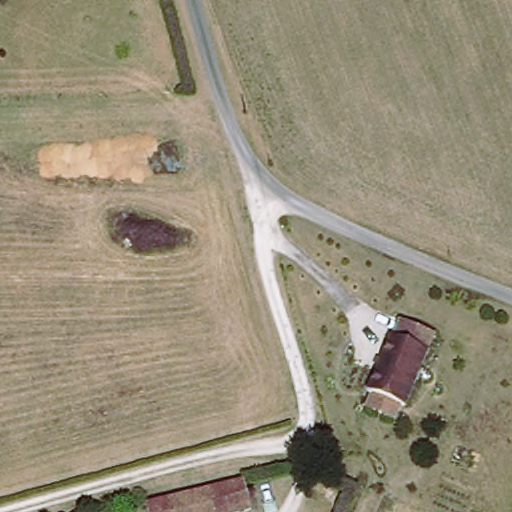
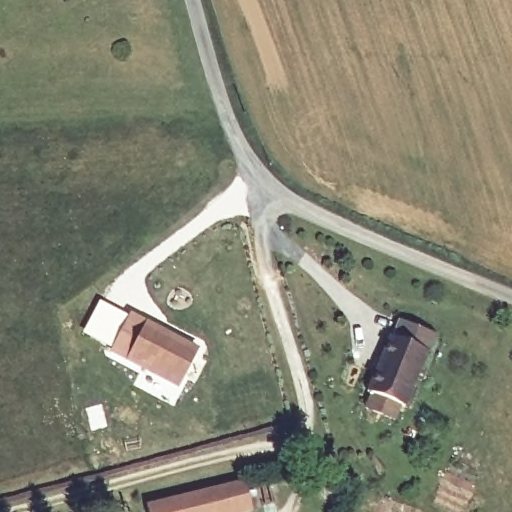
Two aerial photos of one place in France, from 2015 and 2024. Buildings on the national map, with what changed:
new [(98,300),(128,315),(109,348),(81,331),(98,300)]
new [(109,348),(128,315),(130,310),(201,346),(178,390),(107,351),(109,348)]
unchanged [(402,402),(365,385),(389,330),(394,332),(402,315),(434,330),(402,402)]
unchanged [(245,488),(248,512),(150,512),(148,505),(236,490),(245,488)]

